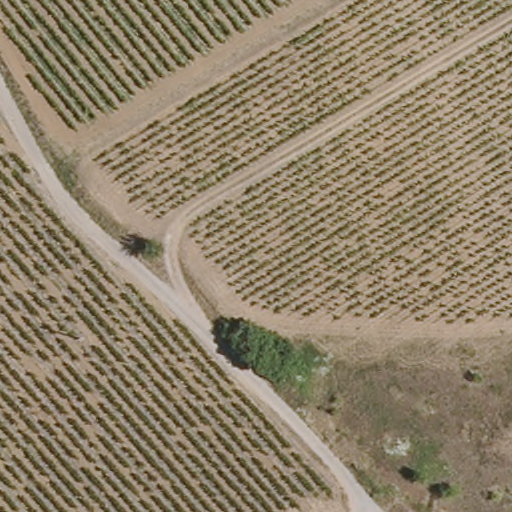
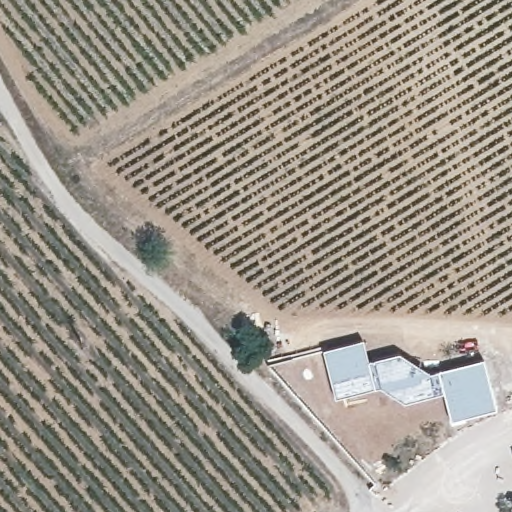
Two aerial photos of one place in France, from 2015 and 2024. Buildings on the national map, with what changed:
new [(362,337),(369,358),(398,350),(430,370),(484,357),(497,409),(449,422),(441,393),(403,403),(379,387),(334,398),(321,349),(362,337)]

